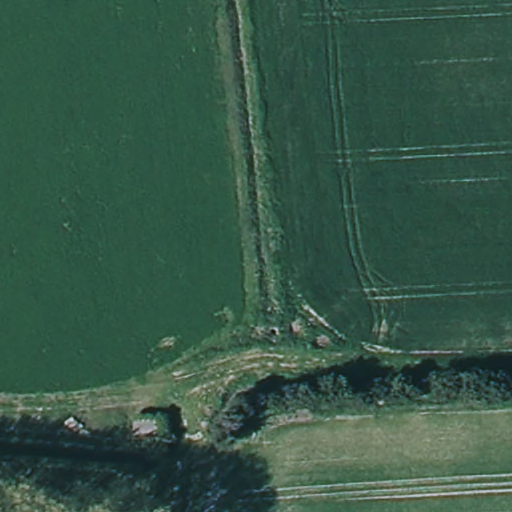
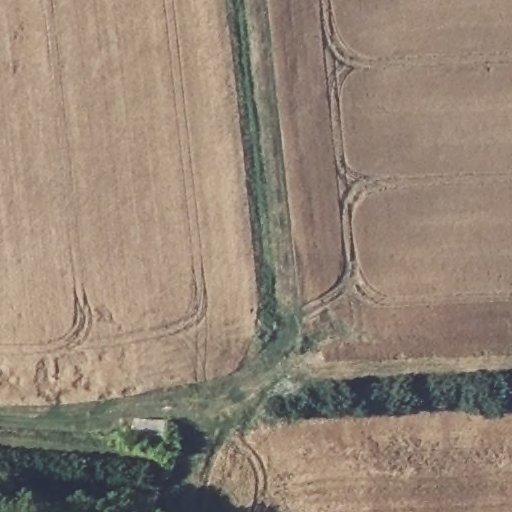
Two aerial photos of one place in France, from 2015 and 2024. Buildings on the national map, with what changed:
unchanged [(134,416),(166,417),(165,438),(134,436),(134,416)]

